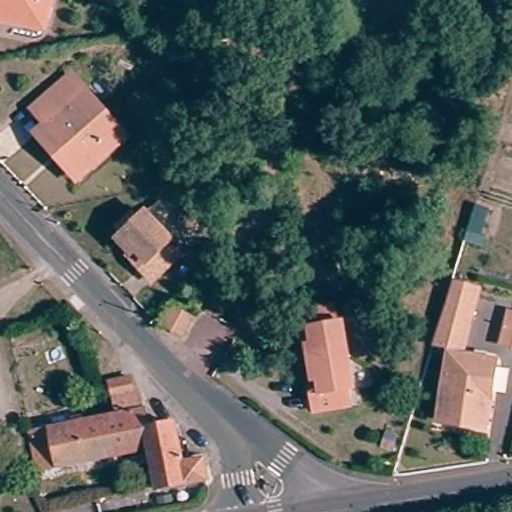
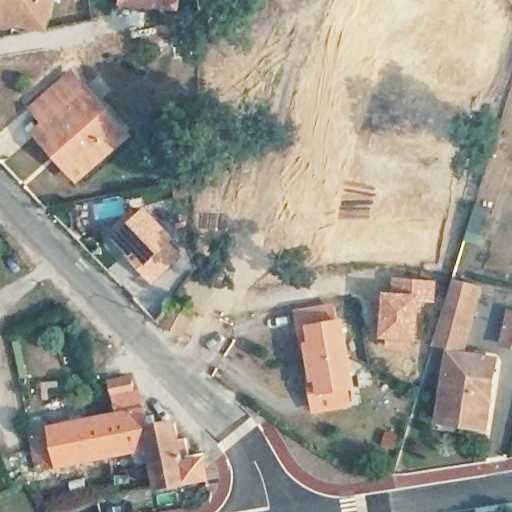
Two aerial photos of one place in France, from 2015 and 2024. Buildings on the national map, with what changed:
unchanged [(41,24),(39,32),(0,21),(0,0),(47,0),(41,24)]
new [(118,0),(181,0),(180,13),(117,8),(118,0)]
unchanged [(53,154),(39,138),(49,130),(36,116),(68,85),(121,144),(83,176),(77,182),(53,154)]
unchanged [(123,252),(108,236),(114,231),(108,225),(123,210),(129,216),(137,209),(163,237),(159,241),(171,254),(144,279),(131,266),(120,254),(123,252)]
new [(382,291),(391,291),(392,277),(437,280),(435,302),(420,302),(416,349),(384,347),(385,341),(379,341),(382,291)]
unchanged [(427,346),(447,284),(473,291),(459,350),(427,346)]
unchanged [(165,325),(176,306),(191,316),(180,334),(165,325)]
unchanged [(304,350),(301,336),(298,319),(337,313),(339,327),(344,327),(351,364),(308,371),(304,350)]
unchanged [(512,326),(512,347),(506,346),(512,326)]
unchanged [(434,420),(442,355),(493,361),(485,426),(434,420)]
unchanged [(308,371),(351,364),(357,395),(352,396),(355,412),(316,419),(313,402),(311,388),(308,371)]
unchanged [(200,463),(204,483),(153,491),(148,459),(40,476),(33,433),(115,419),(109,383),(131,380),(134,396),(136,395),(139,415),(141,414),(142,425),(151,423),(152,431),(172,428),(178,467),(200,463)]

